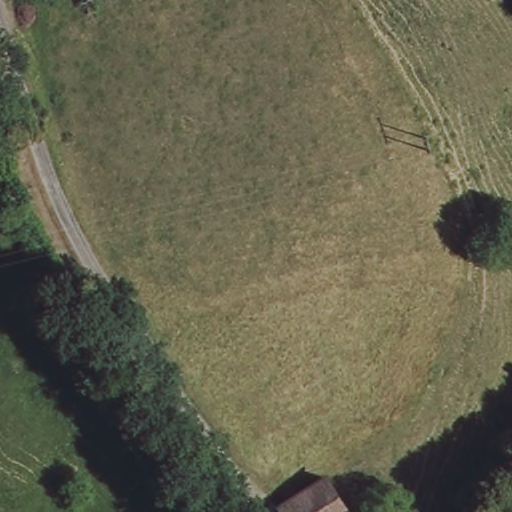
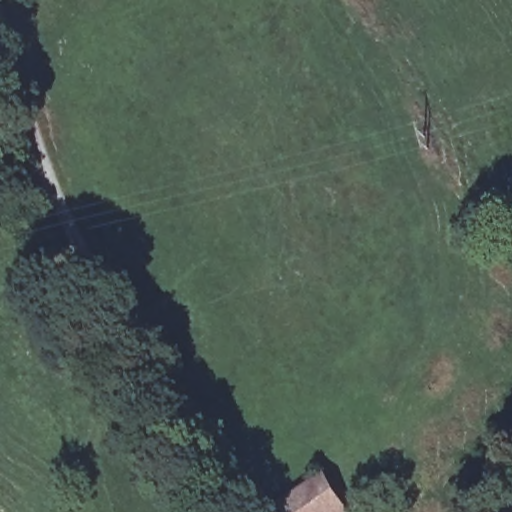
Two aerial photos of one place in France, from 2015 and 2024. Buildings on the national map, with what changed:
unchanged [(328,485),(342,512),(285,512),(283,508),(328,485)]

